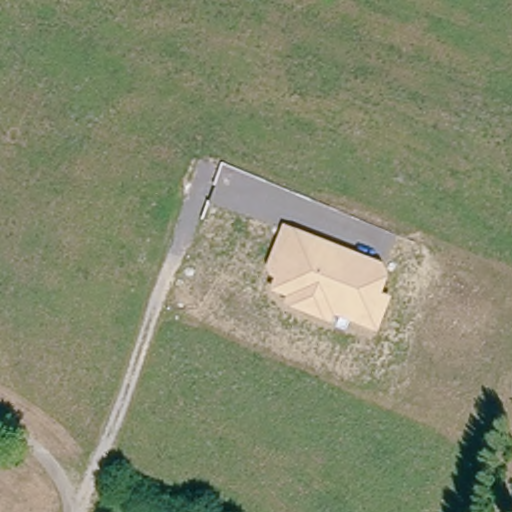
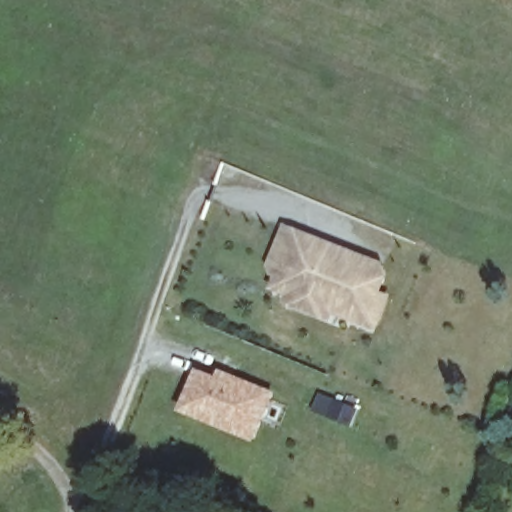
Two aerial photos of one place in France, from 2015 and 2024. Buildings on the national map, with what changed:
unchanged [(281,314),(285,306),(267,299),(272,287),(266,285),(263,278),(278,239),(320,256),(361,272),(373,277),(376,284),(374,289),(376,290),(369,305),(377,309),(366,339),(343,329),(345,325),(325,317),(321,330),(281,314)]
new [(216,377),(219,369),(276,392),(255,442),(179,411),(196,368),(216,377)]

